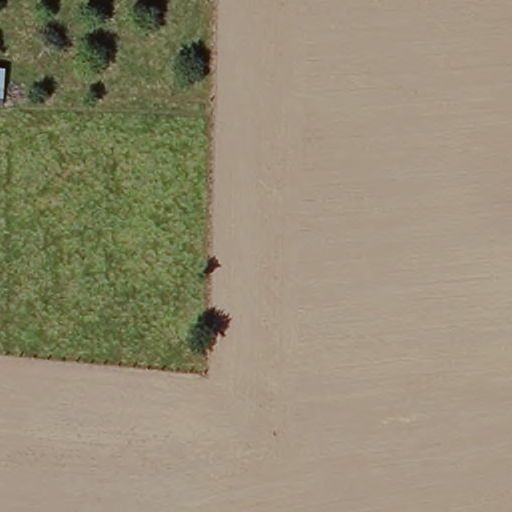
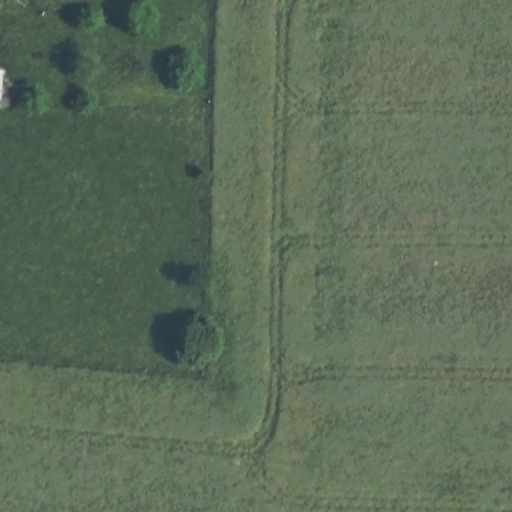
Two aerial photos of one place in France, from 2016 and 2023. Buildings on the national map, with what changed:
unchanged [(4,106),(0,106),(0,71),(5,71),(4,92),(4,106)]

